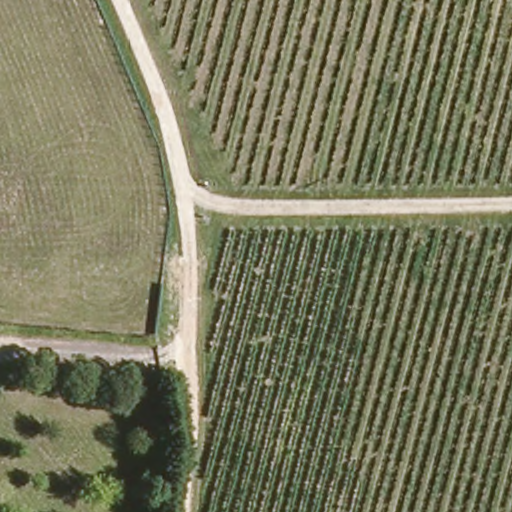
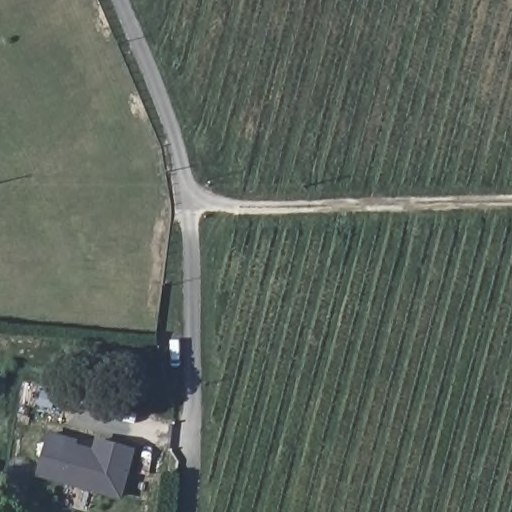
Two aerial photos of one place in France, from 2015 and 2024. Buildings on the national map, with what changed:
new [(95,439),(136,449),(122,500),(37,478),(49,433),(78,440),(76,445),(92,450),(95,439)]

